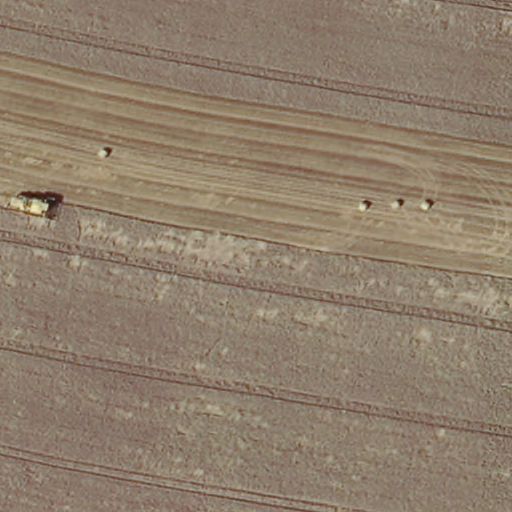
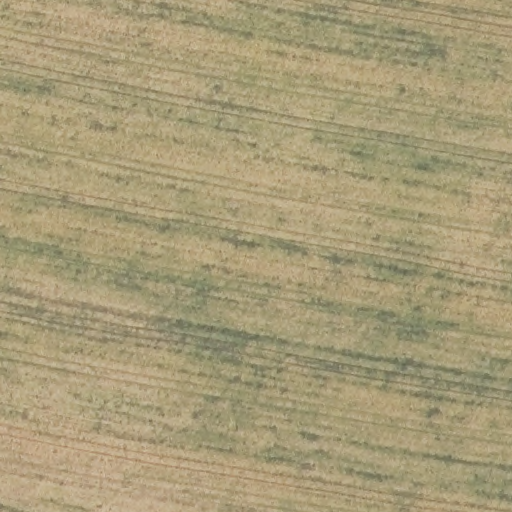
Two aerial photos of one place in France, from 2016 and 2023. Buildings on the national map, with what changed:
[]

